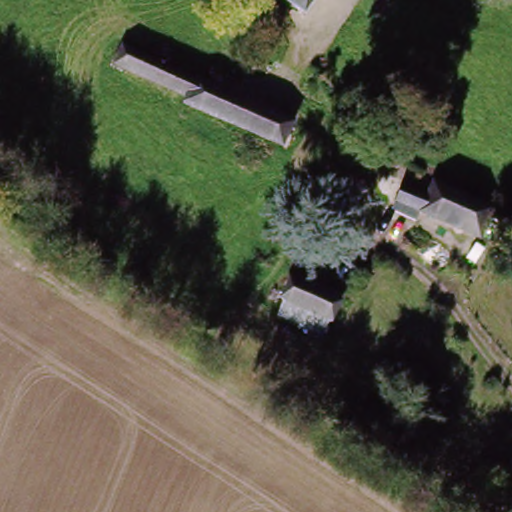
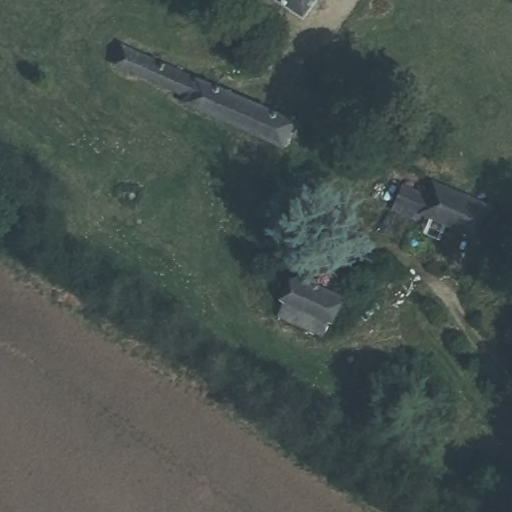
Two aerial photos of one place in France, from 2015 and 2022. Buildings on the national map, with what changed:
unchanged [(280,0),(318,0),(305,18),(280,0)]
unchanged [(192,95),(119,63),(128,44),(200,76),(192,95)]
unchanged [(250,139),(254,131),(189,101),(192,95),(200,76),(297,121),(286,146),(272,140),(268,147),(250,139)]
unchanged [(409,201),(406,208),(379,196),(383,189),(390,173),(424,188),(430,175),(492,202),(480,232),(418,205),(409,201)]
unchanged [(278,317),(283,304),(296,276),(334,294),(321,322),(316,334),(278,317)]

